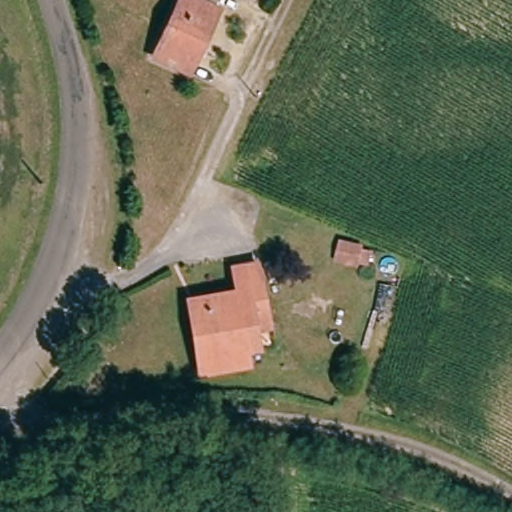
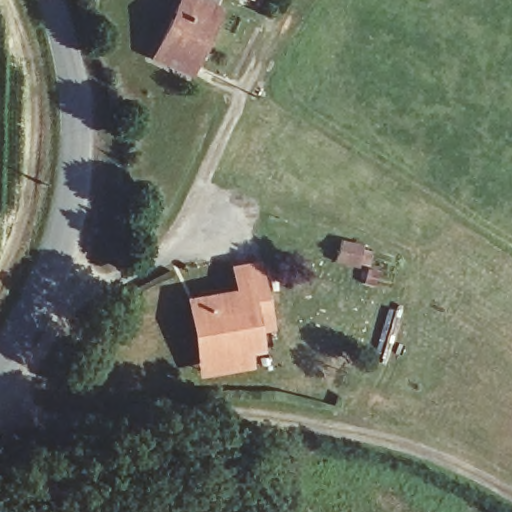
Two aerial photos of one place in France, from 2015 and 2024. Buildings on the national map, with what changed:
unchanged [(191,83),(146,64),(177,0),(223,0),(191,83)]
unchanged [(188,311),(196,310),(215,307),(212,299),(235,294),(230,271),(255,268),(261,309),(263,324),(252,326),(256,347),(242,350),(245,362),(210,368),(199,371),(188,311)]

